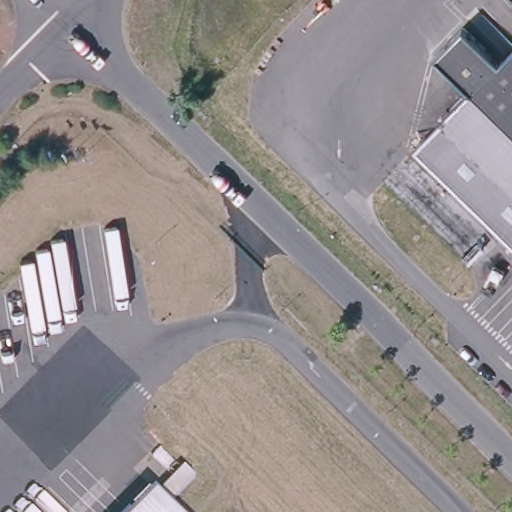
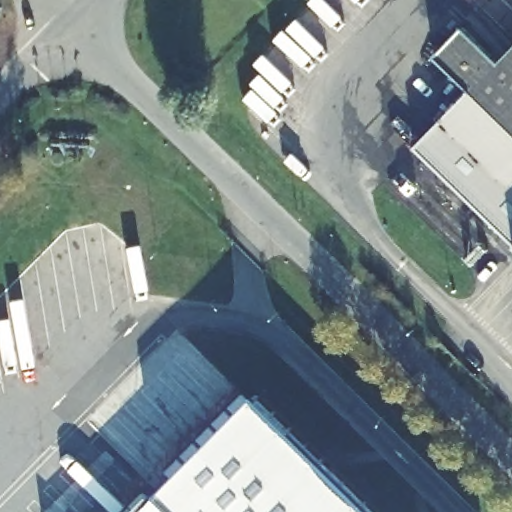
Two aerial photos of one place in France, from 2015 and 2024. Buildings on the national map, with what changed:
unchanged [(503,52),(512,43),(512,163),(505,170),(445,111),(474,82),(439,47),(468,17),(503,52)]
unchanged [(505,170),(512,163),(512,244),(410,146),(445,111),(505,170)]
new [(373,512),(170,512),(164,506),(156,498),(256,397),(373,512)]
unchanged [(180,465),(192,477),(164,506),(170,512),(134,512),(152,494),(180,465)]

